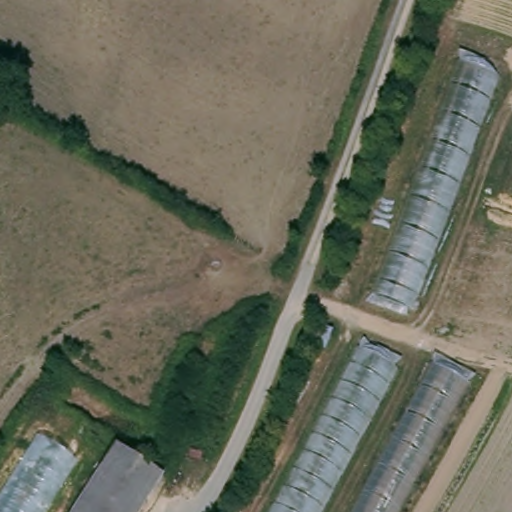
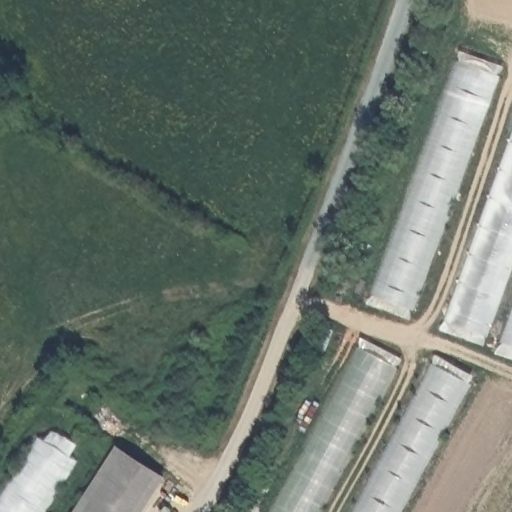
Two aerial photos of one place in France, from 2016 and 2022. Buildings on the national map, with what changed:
unchanged [(460,54),(504,69),(413,319),(368,305),(460,54)]
new [(512,131),(512,348),(443,322),(512,131)]
unchanged [(367,339),(406,359),(321,512),(273,512),(367,339)]
unchanged [(479,379),(405,512),(350,512),(433,355),(479,379)]
unchanged [(147,512),(74,512),(121,442),(173,473),(147,512)]

